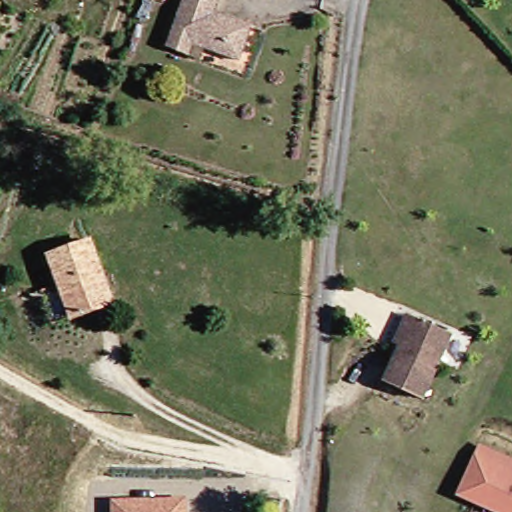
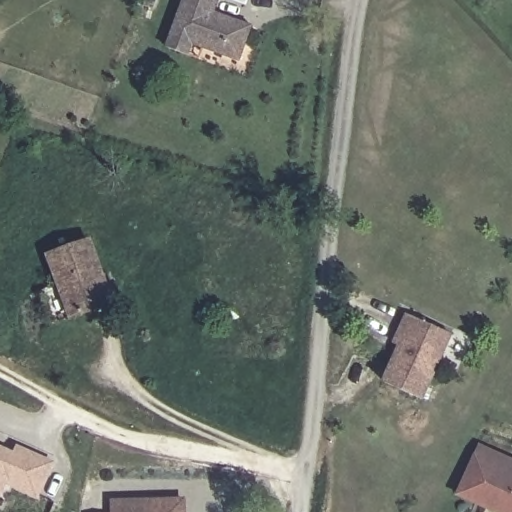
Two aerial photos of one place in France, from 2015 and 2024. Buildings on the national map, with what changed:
unchanged [(188,0),(223,0),(220,9),(226,11),(258,21),(247,57),(215,46),(199,41),(196,51),(172,44),(188,0)]
unchanged [(49,257),(82,240),(95,264),(114,298),(81,316),(77,310),(49,257)]
unchanged [(391,382),(407,346),(398,343),(412,312),(421,315),(457,332),(458,333),(428,399),(427,399),(391,382)]
new [(16,455),(19,448),(51,463),(37,493),(5,479),(0,490),(0,447),(16,455)]
unchanged [(471,460),(476,451),(512,468),(512,512),(484,512),(453,498),(471,460)]
unchanged [(183,499),(183,512),(113,512),(113,499),(183,499)]

